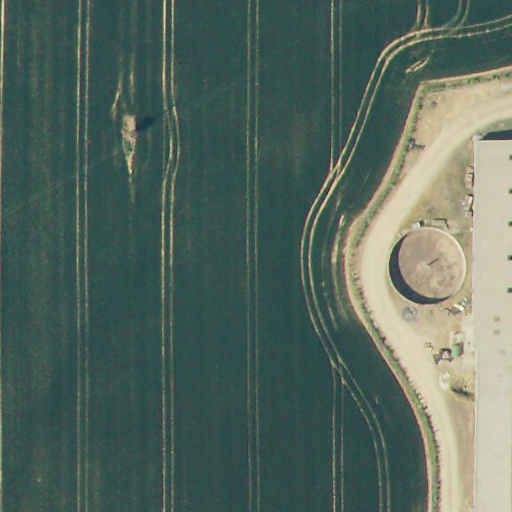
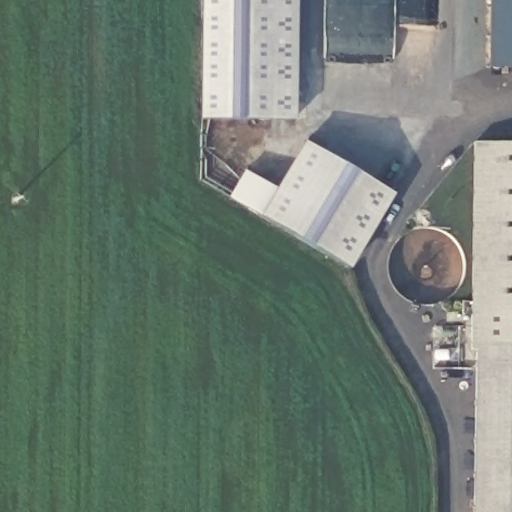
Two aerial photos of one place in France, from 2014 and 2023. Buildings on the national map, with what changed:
new [(200,119),(200,0),(296,0),(295,120),(200,119)]
new [(486,0),(512,0),(512,69),(485,68),(486,0)]
new [(351,269),(258,215),(303,140),(393,194),(351,269)]
unchanged [(512,345),(475,343),(475,350),(470,350),(471,143),(512,143),(512,345)]
unchanged [(512,345),(512,512),(474,512),(475,350),(475,343),(512,345)]

